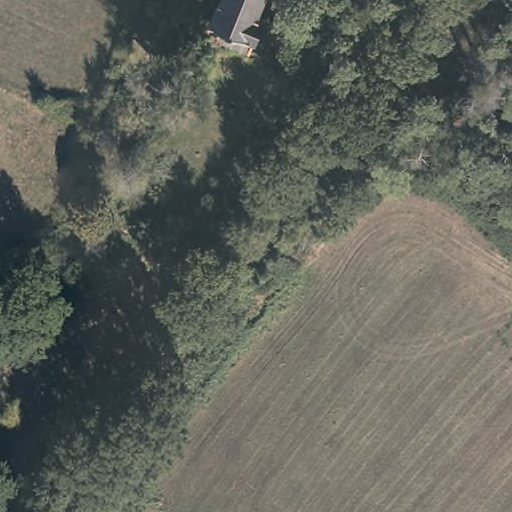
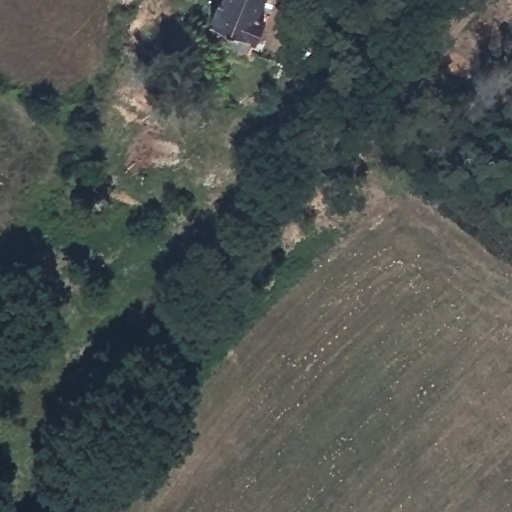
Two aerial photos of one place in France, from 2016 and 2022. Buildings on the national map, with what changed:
unchanged [(252,16),(259,19),(245,54),(209,40),(214,27),(206,24),(216,0),(217,0),(220,0),(259,0),(252,16)]

